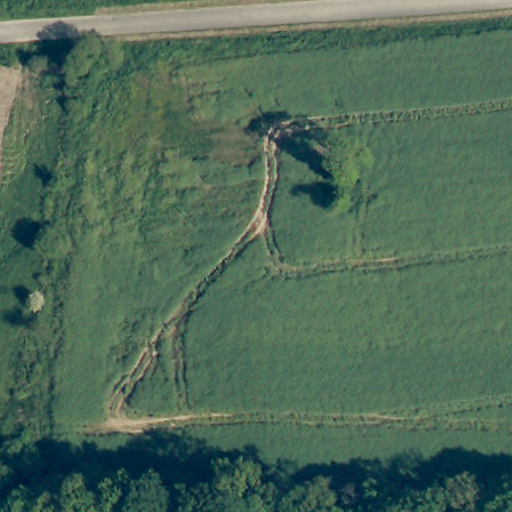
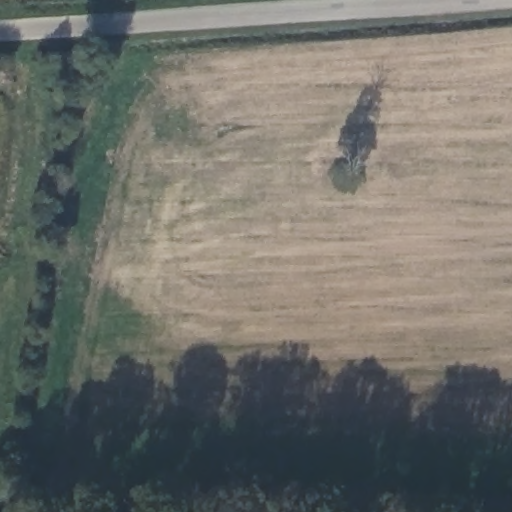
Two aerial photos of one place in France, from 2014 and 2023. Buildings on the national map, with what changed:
[]

